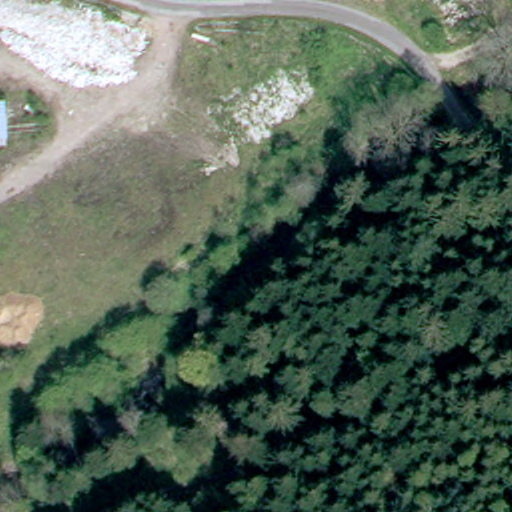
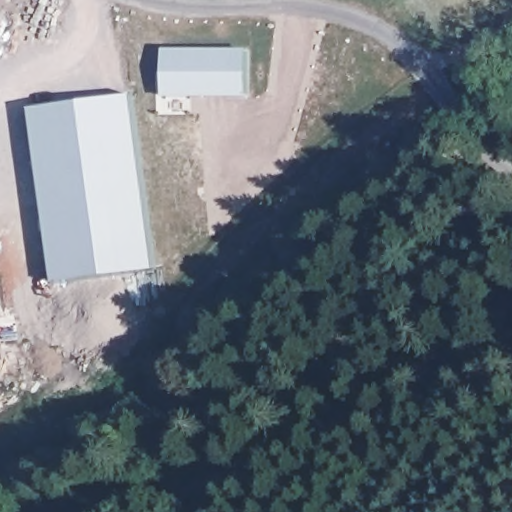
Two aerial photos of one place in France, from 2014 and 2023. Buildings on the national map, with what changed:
new [(167,49),(250,50),(253,95),(170,96),(167,49)]
new [(137,95),(161,270),(60,283),(37,108),(137,95)]

